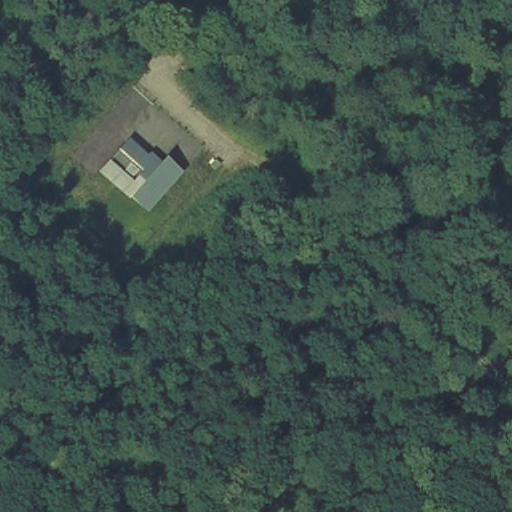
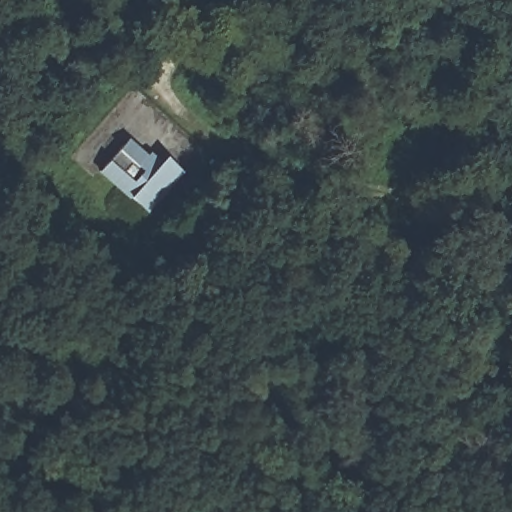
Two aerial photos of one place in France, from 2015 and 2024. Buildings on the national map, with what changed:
unchanged [(149,216),(99,172),(129,137),(150,157),(160,148),(188,172),(149,216)]

